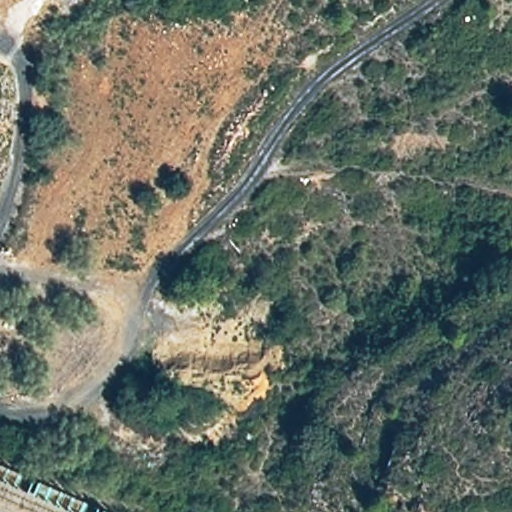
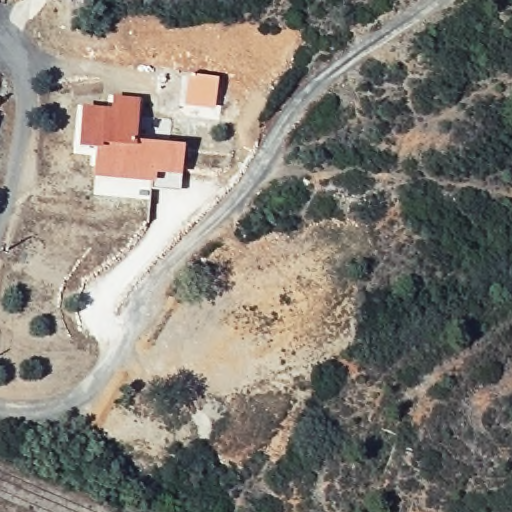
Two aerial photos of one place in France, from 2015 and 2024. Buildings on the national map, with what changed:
new [(177,186),(95,181),(96,151),(81,150),(83,111),(113,112),(114,100),(139,101),(136,149),(179,151),(177,186)]

